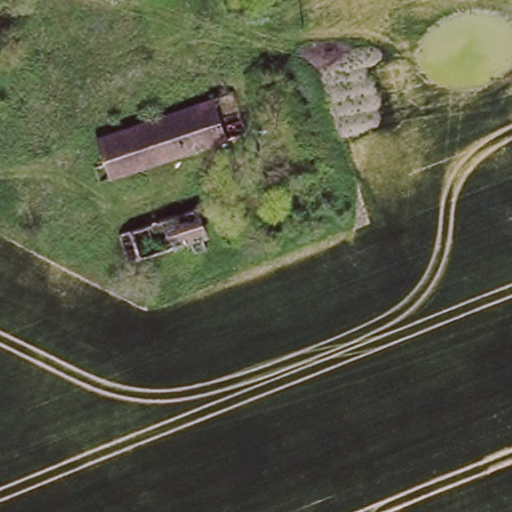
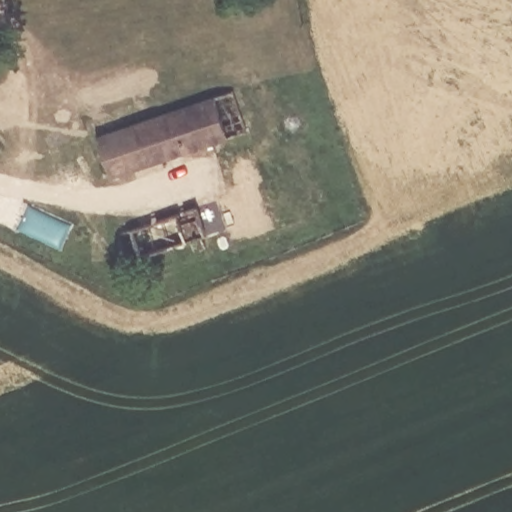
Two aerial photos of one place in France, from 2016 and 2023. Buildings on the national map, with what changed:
unchanged [(223,94),(237,136),(93,186),(88,171),(97,168),(87,140),(223,94)]
unchanged [(203,206),(213,235),(208,237),(211,246),(198,250),(195,241),(136,261),(126,233),(203,206)]

